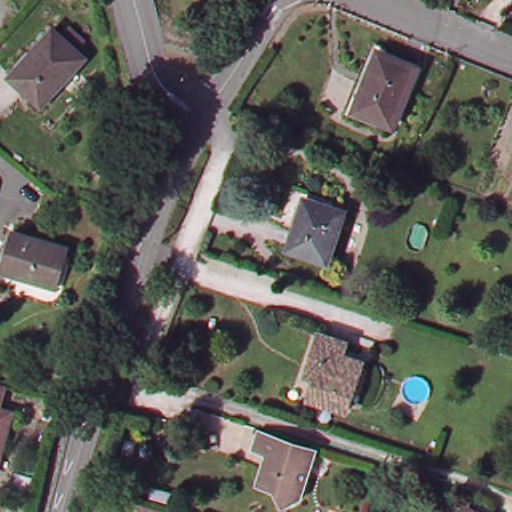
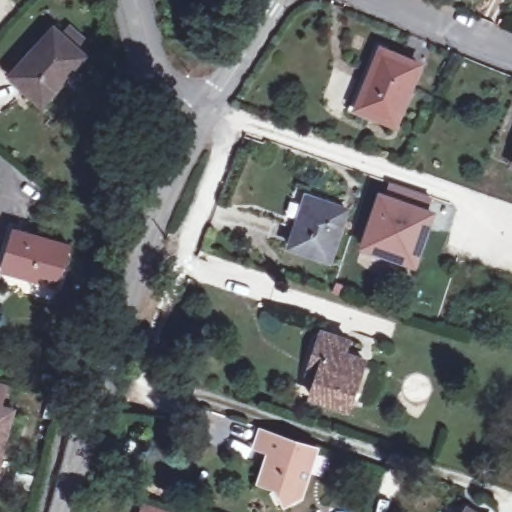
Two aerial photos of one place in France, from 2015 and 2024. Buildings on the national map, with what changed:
unchanged [(80,93),(63,78),(44,101),(12,73),(55,24),(87,52),(77,63),(93,77),(80,93)]
unchanged [(360,109),(383,51),(422,66),(397,124),(360,109)]
new [(385,195),(390,184),(432,200),(429,211),(437,213),(417,270),(358,252),(380,192),(385,195)]
unchanged [(292,248),(308,197),(349,210),(332,261),(292,248)]
unchanged [(70,248),(58,287),(3,271),(15,231),(70,248)]
unchanged [(351,342),(347,354),(367,362),(350,410),(314,397),(320,378),(310,375),(317,356),(325,333),(351,342)]
unchanged [(8,386),(3,409),(12,412),(0,461),(0,383),(8,386)]
unchanged [(289,504),(278,486),(263,481),(273,449),(258,445),(264,430),(323,450),(308,494),(289,504)]
unchanged [(163,512),(145,512),(147,507),(163,512)]
unchanged [(475,512),(470,512),(471,510),(475,512)]

